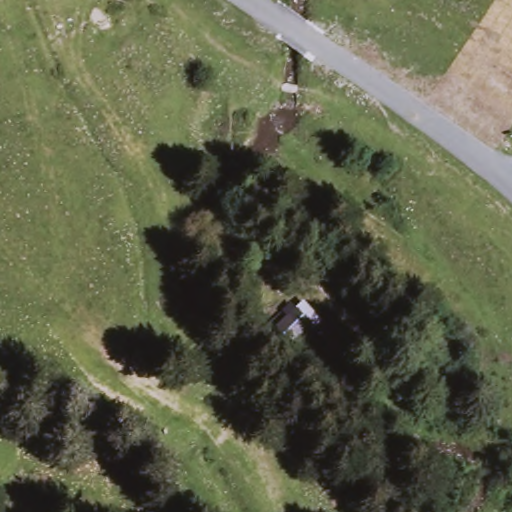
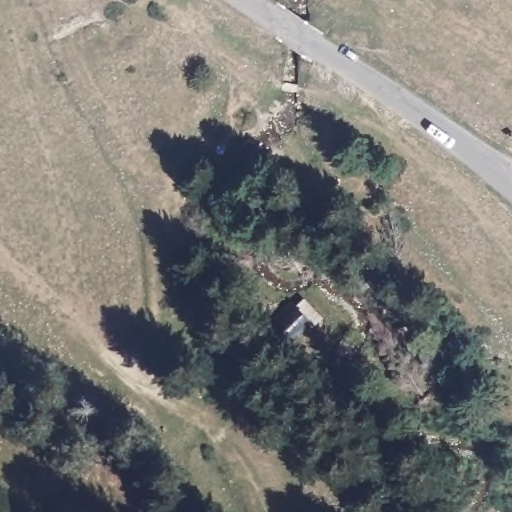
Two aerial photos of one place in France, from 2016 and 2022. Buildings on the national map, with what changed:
unchanged [(311,309),(320,318),(292,338),(275,315),(302,297),(311,309)]

